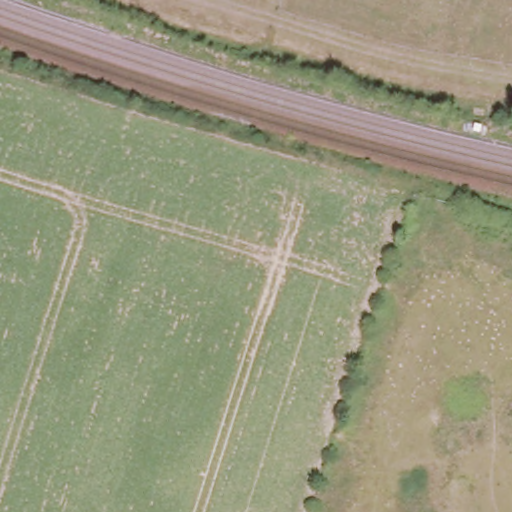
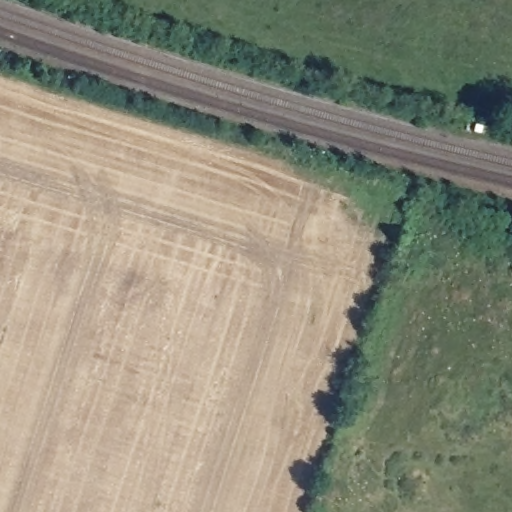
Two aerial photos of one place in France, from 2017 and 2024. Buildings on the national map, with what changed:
[]

